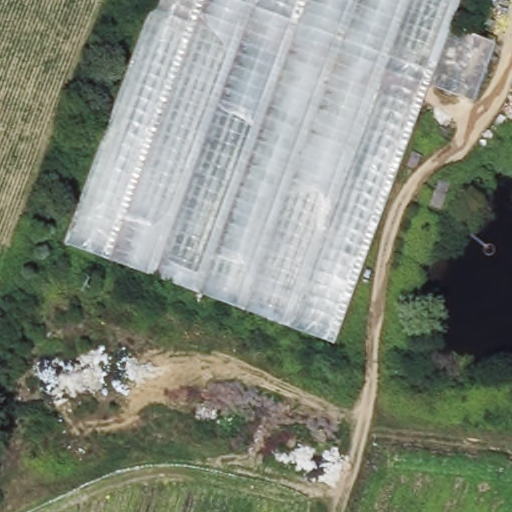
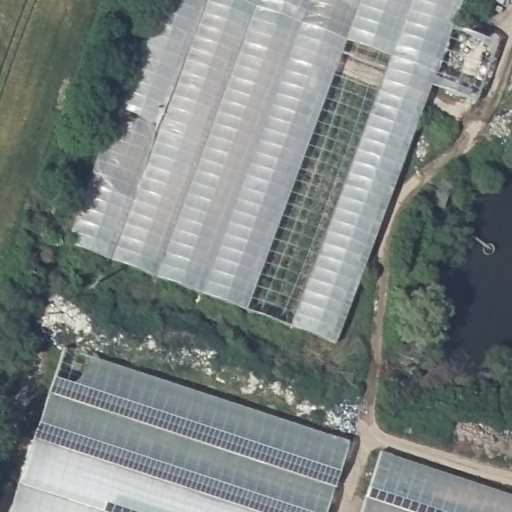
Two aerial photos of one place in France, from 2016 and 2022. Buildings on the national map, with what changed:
unchanged [(500,44),(476,106),(431,90),(333,348),(65,246),(154,0),(462,0),(452,27),(500,44)]
new [(350,442),(326,512),(9,512),(64,347),(350,442)]
new [(380,450),(512,493),(512,512),(360,512),(380,450)]

